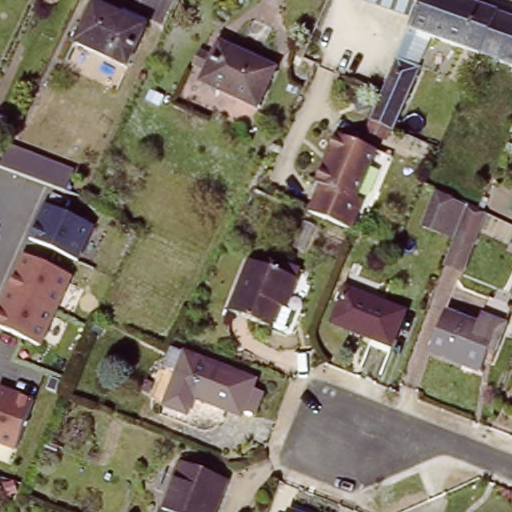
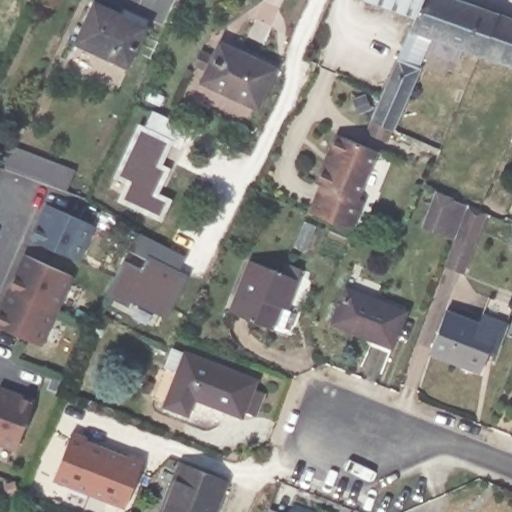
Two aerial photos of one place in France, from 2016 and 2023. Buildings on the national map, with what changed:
unchanged [(130,58),(79,34),(94,0),(113,0),(150,17),(130,58)]
unchanged [(361,0),(421,0),(414,19),(361,0)]
unchanged [(431,39),(392,131),(371,121),(382,94),(414,19),(421,0),(460,0),(495,13),(477,56),(431,39)]
unchanged [(477,56),(495,13),(512,19),(512,68),(477,56)]
unchanged [(222,38),(278,64),(261,103),(205,76),(222,38)]
unchanged [(437,95),(439,91),(456,99),(454,102),(437,95)]
new [(162,164),(169,168),(159,192),(172,200),(161,221),(115,201),(124,183),(112,178),(137,123),(144,126),(152,110),(190,128),(180,148),(171,145),(162,164)]
unchanged [(319,182),(315,179),(337,130),(375,148),(354,196),(362,200),(351,227),(349,226),(307,208),(319,182)]
unchanged [(62,190),(0,164),(0,157),(7,142),(72,168),(62,190)]
unchanged [(512,180),(512,190),(509,189),(512,180)]
unchanged [(483,210),(459,272),(444,268),(454,236),(419,223),(429,191),(483,210)]
unchanged [(95,225),(79,262),(25,239),(41,202),(95,225)]
new [(179,270),(187,276),(165,318),(132,300),(126,304),(106,294),(123,258),(141,268),(146,258),(129,250),(137,231),(185,256),(179,270)]
unchanged [(44,348),(0,329),(0,303),(21,256),(74,276),(44,348)]
unchanged [(250,261),(299,280),(289,309),(280,306),(272,327),(230,311),(250,261)]
unchanged [(411,343),(395,337),(391,346),(332,323),(346,288),(406,311),(421,318),(411,343)]
unchanged [(427,351),(444,309),(477,322),(482,312),(497,319),(504,321),(492,347),(487,345),(477,370),(427,351)]
unchanged [(247,407),(236,402),(233,408),(185,388),(177,405),(156,396),(179,344),(248,375),(246,379),(257,384),(247,407)]
unchanged [(14,453),(0,447),(0,386),(35,398),(14,453)]
new [(86,437),(85,439),(106,448),(88,492),(52,478),(71,431),(86,437)]
new [(127,456),(127,453),(142,459),(124,506),(88,492),(106,448),(127,456)]
unchanged [(213,512),(160,512),(181,461),(227,479),(213,512)]
unchanged [(290,506),(306,512),(287,512),(290,506)]

